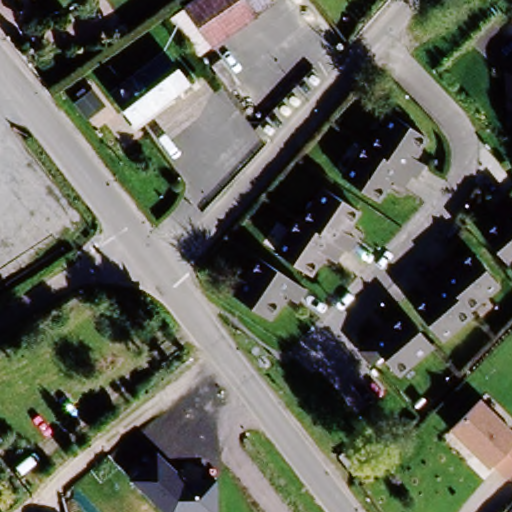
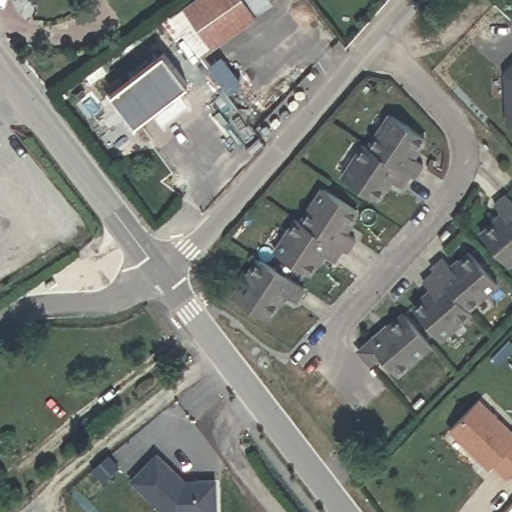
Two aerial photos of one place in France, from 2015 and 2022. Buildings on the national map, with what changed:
unchanged [(199,0),(260,0),(265,6),(251,18),(212,50),(201,60),(170,23),(181,15),(199,0)]
unchanged [(108,90),(146,61),(160,50),(181,80),(168,90),(131,120),(108,90)]
unchanged [(512,63),(512,125),(505,125),(503,74),(512,63)]
unchanged [(77,106),(81,101),(77,97),(82,92),(86,96),(90,92),(101,100),(88,115),(77,106)]
unchanged [(407,149),(421,160),(411,172),(408,170),(367,140),(391,109),(421,130),(407,149)]
unchanged [(399,182),(389,175),(374,195),(340,170),(365,138),(367,140),(408,170),(399,182)]
unchanged [(325,186),(358,209),(345,227),(357,235),(347,250),(341,245),(302,220),(325,186)]
unchanged [(512,263),(510,265),(482,234),(503,214),(495,205),(506,195),(512,201),(512,263)]
unchanged [(275,250),(298,216),(302,220),(341,245),(331,260),(323,255),(310,274),(275,250)]
unchanged [(468,251),(496,280),(468,307),(433,271),(430,268),(442,257),(451,267),(468,251)]
unchanged [(284,291),(267,315),(235,292),(260,256),(305,287),(296,300),(284,291)]
unchanged [(470,310),(441,337),(415,309),(432,292),(422,281),(433,271),(468,307),(470,310)]
unchanged [(401,312),(430,340),(396,370),(380,355),(373,362),(362,346),(366,342),(380,328),(383,330),(401,312)]
unchanged [(445,435),(471,402),(512,437),(512,468),(503,478),(489,466),(485,470),(445,435)]
unchanged [(160,451),(189,478),(218,478),(219,512),(166,512),(131,480),(160,451)]

